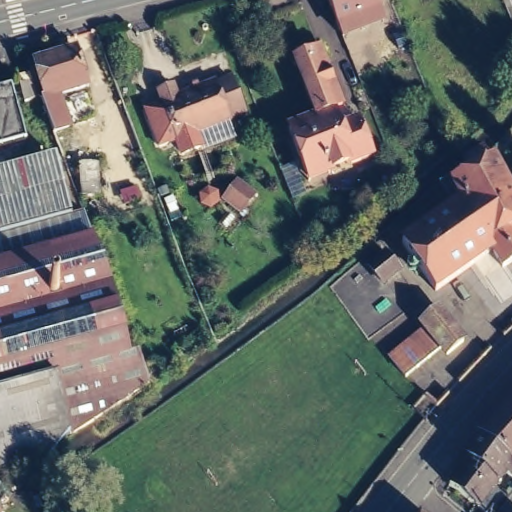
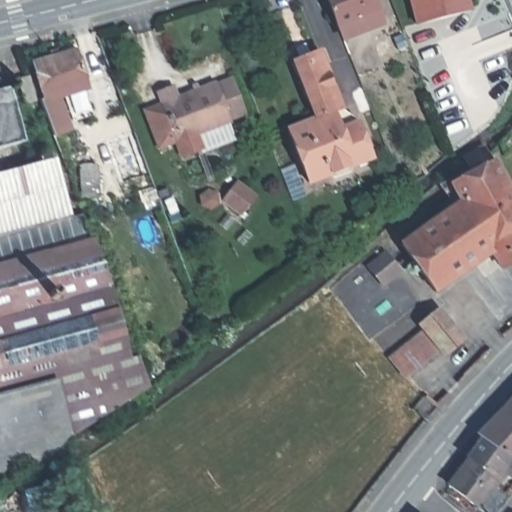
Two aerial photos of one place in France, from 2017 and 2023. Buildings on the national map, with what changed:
unchanged [(366,0),(374,21),(337,35),(339,39),(334,41),(318,0),(366,0)]
new [(417,24),(411,0),(467,0),(470,10),(417,24)]
demolished [(407,49),(391,55),(385,39),(382,29),(397,24),(407,49)]
unchanged [(49,140),(36,105),(39,104),(28,68),(71,54),(83,93),(53,101),(64,134),(49,140)]
unchanged [(288,65),(314,55),(337,114),(311,124),(288,65)]
unchanged [(24,80),(31,105),(20,109),(13,84),(24,80)]
unchanged [(226,90),(238,122),(224,128),(225,131),(222,133),(228,148),(198,159),(192,144),(172,151),(153,101),(168,95),(173,106),(210,92),(212,95),(226,90)]
unchanged [(7,91),(21,145),(0,151),(0,93),(7,91)]
unchanged [(304,187),(283,134),(311,124),(337,114),(354,128),(367,162),(304,187)]
unchanged [(436,292),(401,244),(461,201),(451,183),(472,172),(464,159),(485,147),(492,160),(493,160),(512,195),(512,261),(502,268),(492,251),(436,292)]
unchanged [(35,483),(22,480),(24,471),(0,477),(0,179),(55,164),(71,222),(83,219),(92,244),(108,286),(110,293),(113,303),(117,317),(130,364),(137,361),(144,379),(149,392),(70,441),(69,441),(50,464),(27,469),(37,472),(35,483)]
unchanged [(81,164),(97,164),(99,196),(82,197),(81,164)]
unchanged [(370,267),(385,254),(398,270),(383,283),(370,267)]
unchanged [(416,328),(432,315),(458,347),(442,360),(437,354),(401,383),(384,362),(420,333),(416,328)]
unchanged [(474,441),(512,402),(512,471),(477,443),(474,441)]
unchanged [(495,487),(494,486),(464,464),(462,462),(477,443),(512,471),(512,488),(501,479),(495,487)]
unchanged [(444,490),(464,464),(494,486),(489,493),(500,501),(490,512),(474,512),(444,490)]

